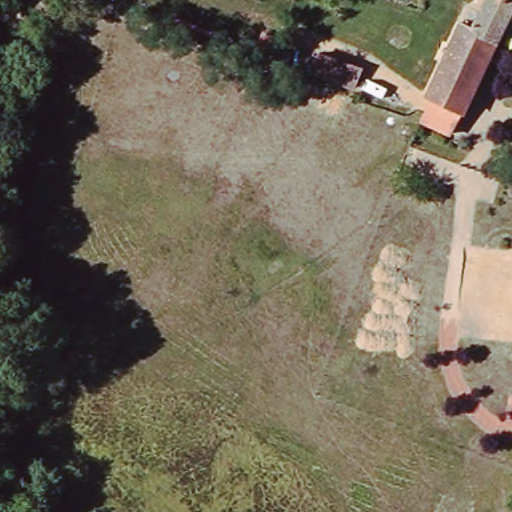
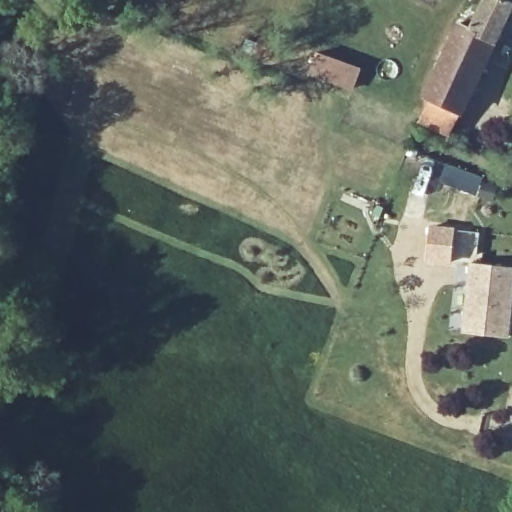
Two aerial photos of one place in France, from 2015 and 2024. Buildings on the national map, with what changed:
unchanged [(457,28),(465,11),(476,16),(485,0),(512,0),(512,7),(461,116),(450,138),(420,124),(430,102),(426,98),(457,28)]
new [(432,225),(458,229),(453,263),(427,261),(432,225)]
new [(512,269),(512,301),(508,338),(463,333),(471,265),(512,269)]

